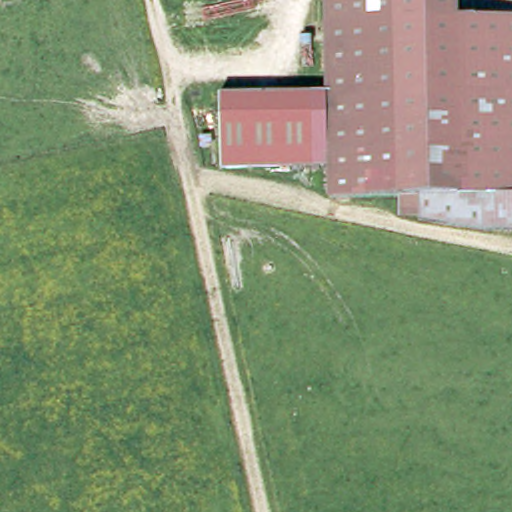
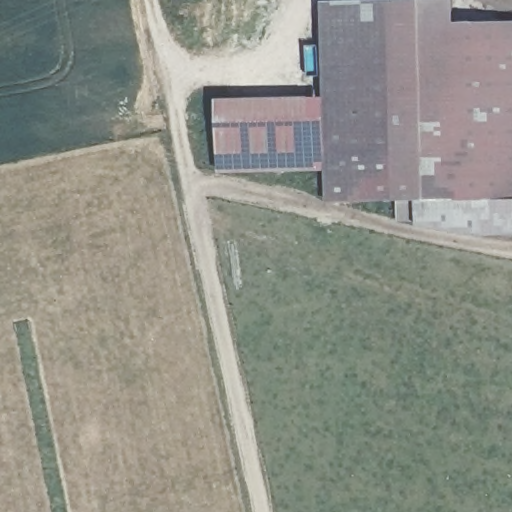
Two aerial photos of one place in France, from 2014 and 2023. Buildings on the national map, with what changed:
unchanged [(479,232),(414,221),(414,217),(395,217),(394,197),(325,199),(320,0),(448,0),(449,19),(512,18),(512,231),(479,232)]
unchanged [(320,166),(216,169),(215,98),(318,95),(320,166)]

